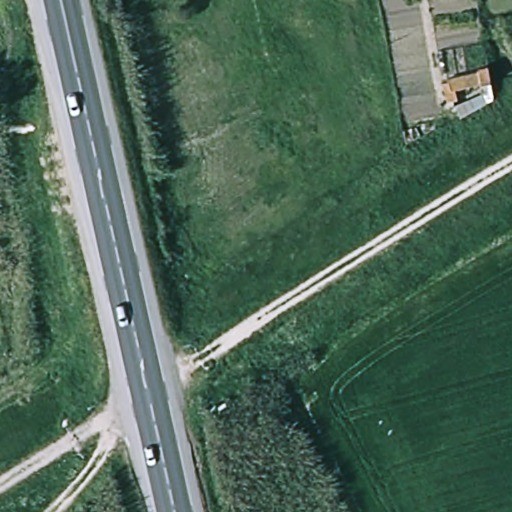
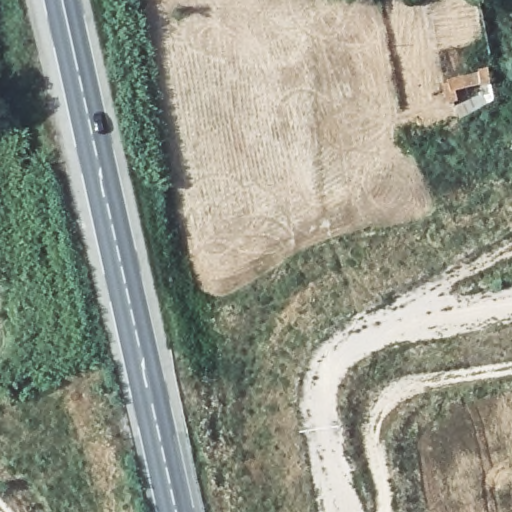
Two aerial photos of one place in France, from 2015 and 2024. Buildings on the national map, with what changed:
unchanged [(484,68),(489,106),(460,114),(450,80),(484,68)]

